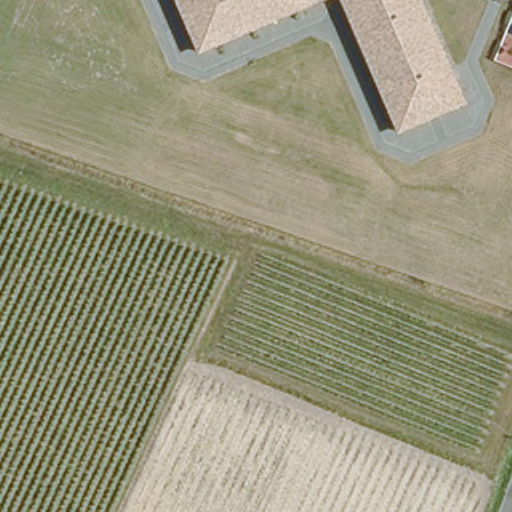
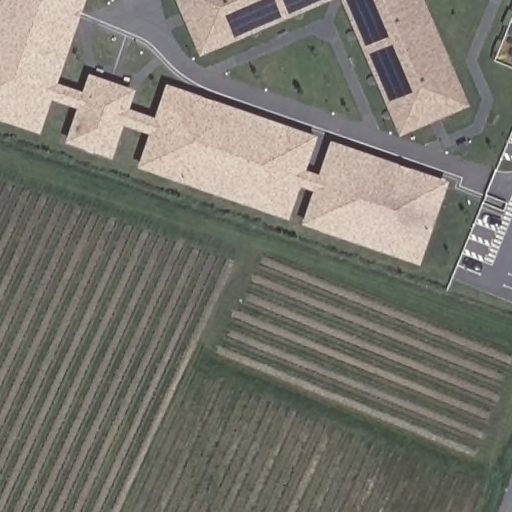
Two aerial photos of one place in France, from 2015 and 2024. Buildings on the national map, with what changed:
new [(58,85),(84,92),(89,77),(134,92),(130,111),(156,119),(166,85),(317,138),(307,171),(323,176),(332,144),(451,183),(423,265),(302,224),(312,190),(300,188),(291,219),(136,166),(145,135),(123,128),(113,159),(66,143),(76,110),(51,102),(40,132),(0,118),(0,0),(86,0),(58,85)]
unchanged [(198,56),(174,0),(331,0),(198,56)]
unchanged [(469,105),(399,136),(340,0),(425,0),(469,105)]

